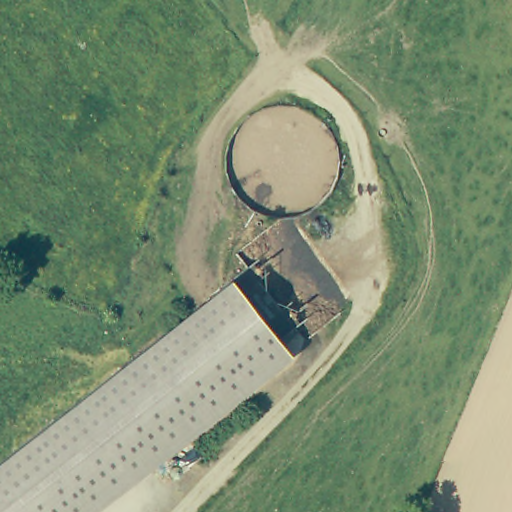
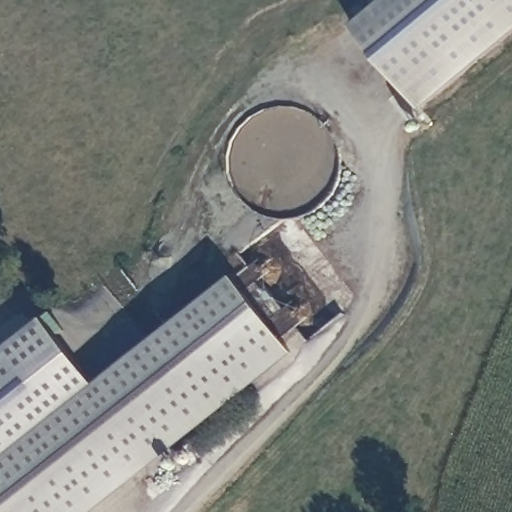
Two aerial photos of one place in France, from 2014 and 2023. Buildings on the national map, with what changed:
new [(350,23),(378,0),(512,0),(512,30),(419,107),(350,23)]
unchanged [(231,276),(279,337),(57,512),(0,512),(0,458),(55,415),(231,276)]
new [(0,353),(43,319),(93,385),(0,458),(0,353)]

